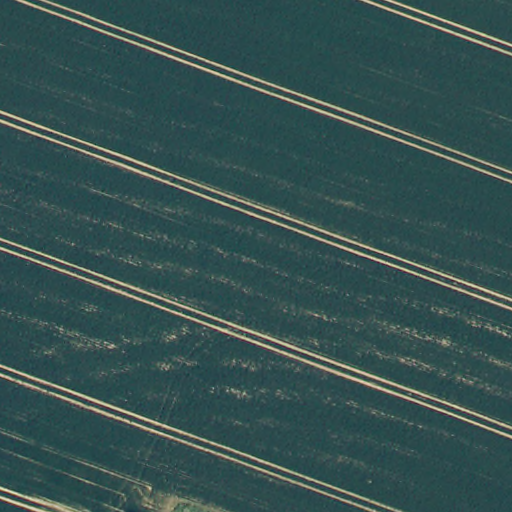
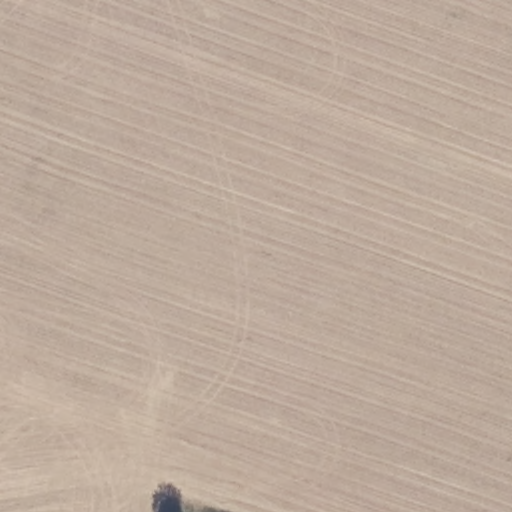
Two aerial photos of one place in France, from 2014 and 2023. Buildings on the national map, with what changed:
[]

